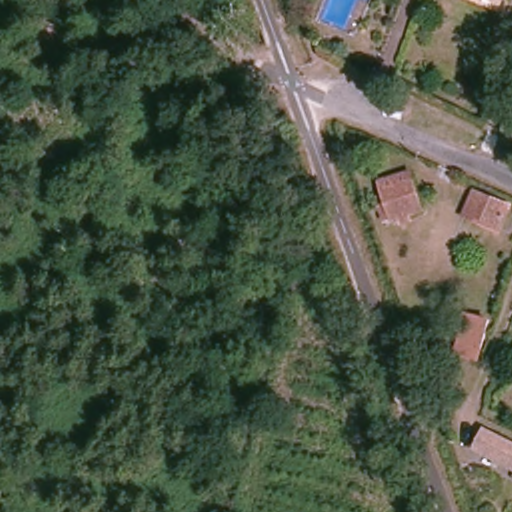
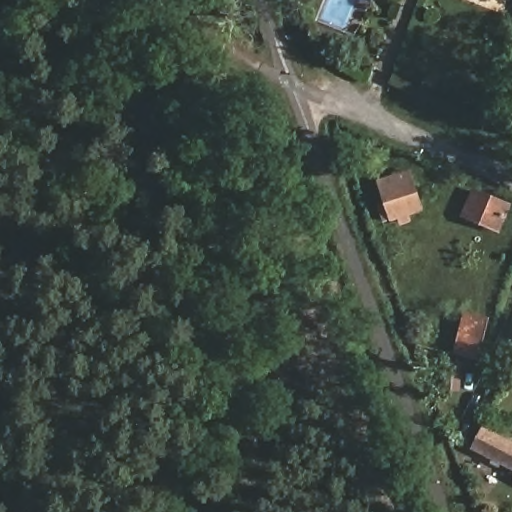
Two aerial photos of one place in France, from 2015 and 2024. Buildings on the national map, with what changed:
unchanged [(421,206),(384,220),(377,203),(389,198),(381,180),(408,171),(421,206)]
unchanged [(470,221),(474,196),(506,204),(503,228),(470,221)]
unchanged [(466,307),(489,313),(478,354),(455,347),(466,307)]
unchanged [(484,432),(512,442),(512,467),(476,453),(484,432)]

